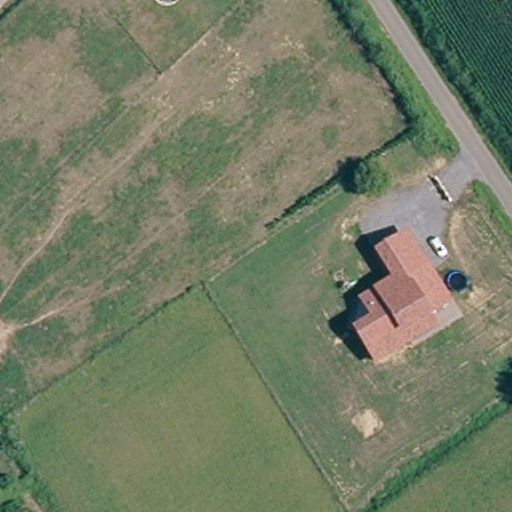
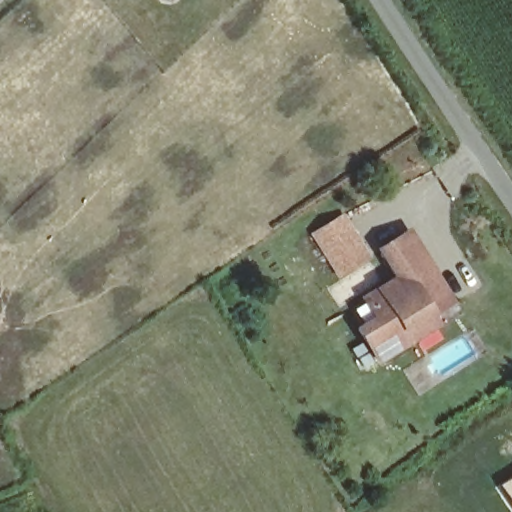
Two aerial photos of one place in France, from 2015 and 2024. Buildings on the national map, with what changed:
new [(344,214),(372,259),(340,280),(310,234),(344,214)]
unchanged [(435,316),(441,330),(377,366),(356,328),(372,318),(360,297),(393,276),(377,247),(409,227),(455,302),(435,316)]
new [(512,511),(496,487),(512,476),(512,511)]

